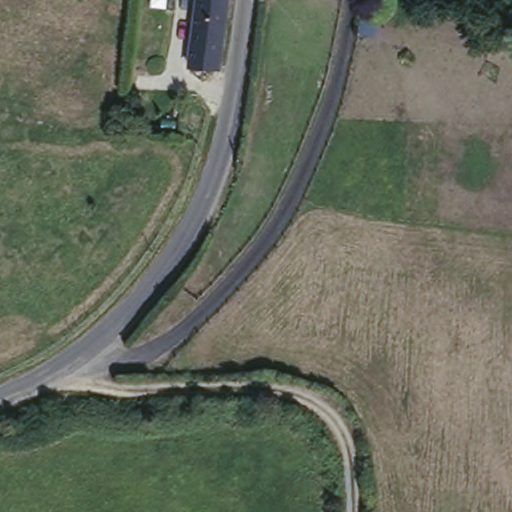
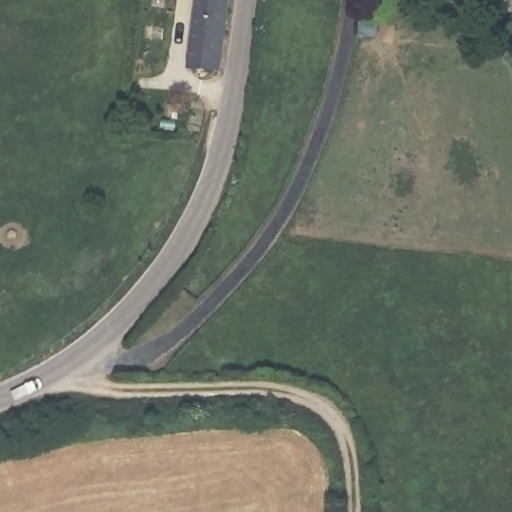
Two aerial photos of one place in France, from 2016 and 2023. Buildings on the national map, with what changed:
unchanged [(229,0),(222,29),(213,72),(185,65),(198,0),(229,0)]

